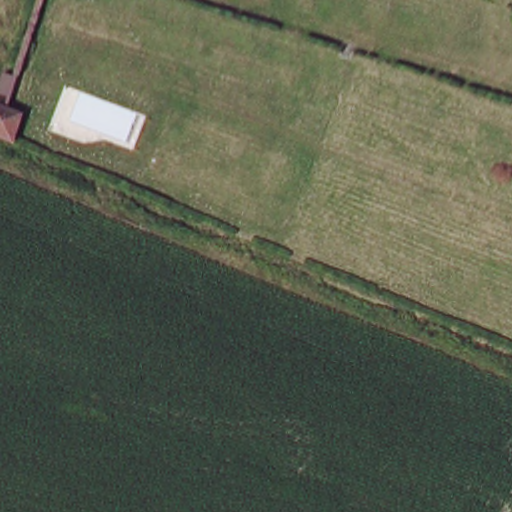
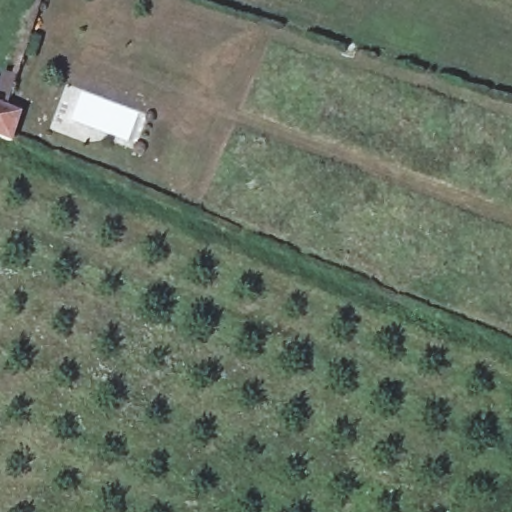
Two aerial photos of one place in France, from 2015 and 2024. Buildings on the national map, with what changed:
unchanged [(7,143),(0,141),(0,108),(5,110),(16,113),(7,143)]

